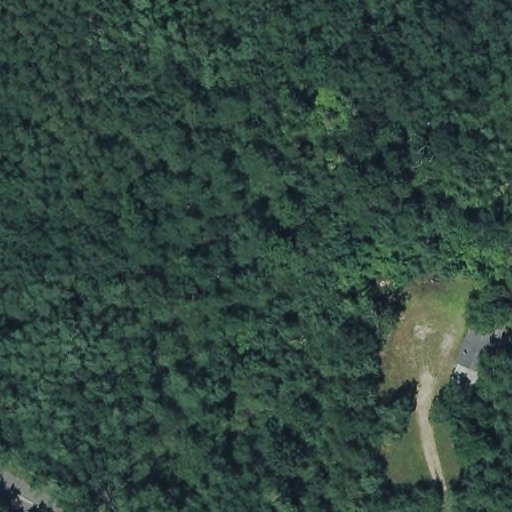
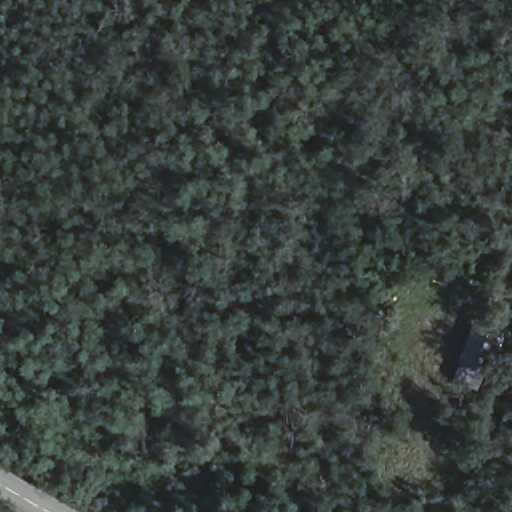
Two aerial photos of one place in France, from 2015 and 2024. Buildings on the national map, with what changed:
unchanged [(480,310),(505,320),(482,368),(457,358),(480,310)]

